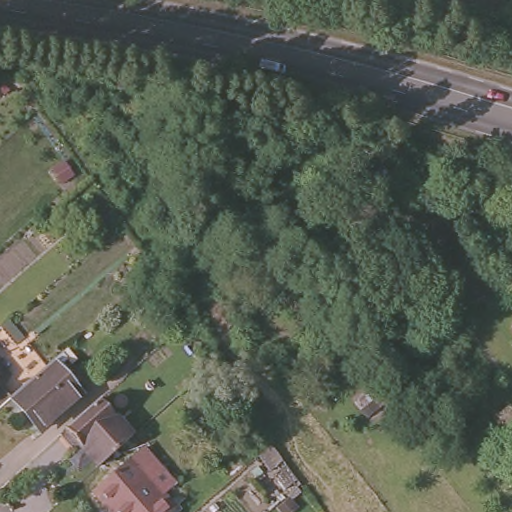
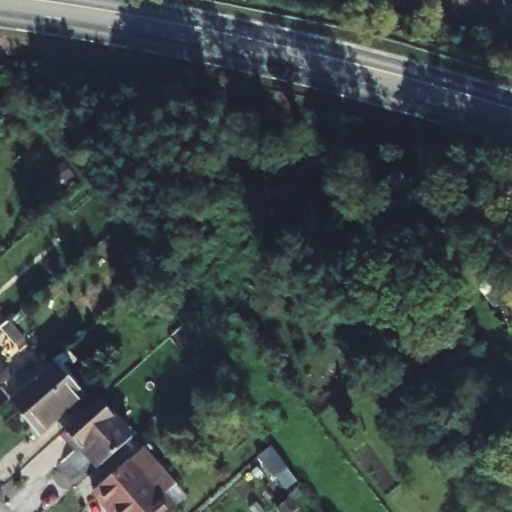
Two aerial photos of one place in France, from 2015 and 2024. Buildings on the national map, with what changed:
unchanged [(44,367),(55,358),(75,382),(68,387),(77,396),(37,432),(8,398),(44,367)]
unchanged [(0,384),(0,364),(10,375),(0,384)]
unchanged [(100,397),(132,434),(113,452),(100,464),(81,442),(77,446),(62,430),(100,397)]
unchanged [(90,500),(128,469),(163,512),(100,512),(90,500)]

